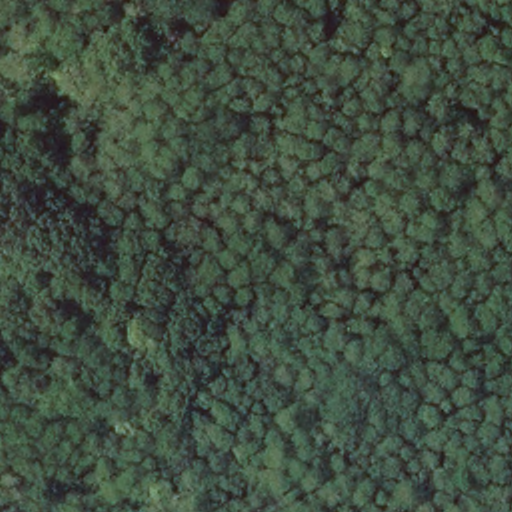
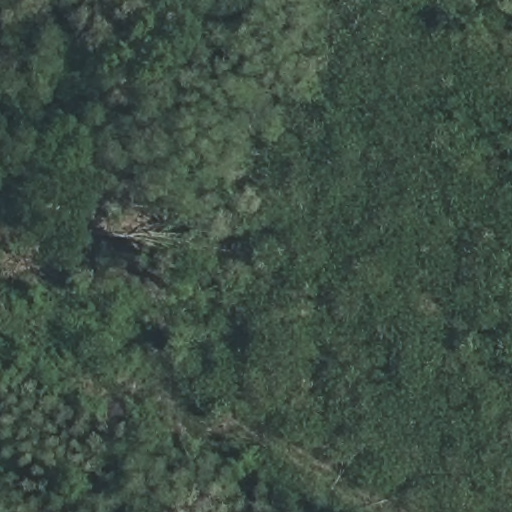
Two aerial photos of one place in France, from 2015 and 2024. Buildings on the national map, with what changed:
[]

